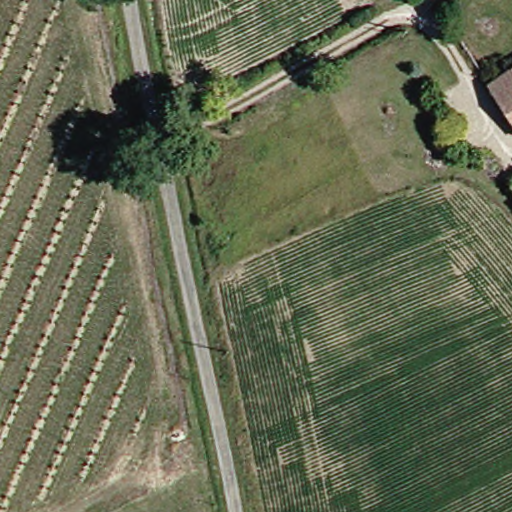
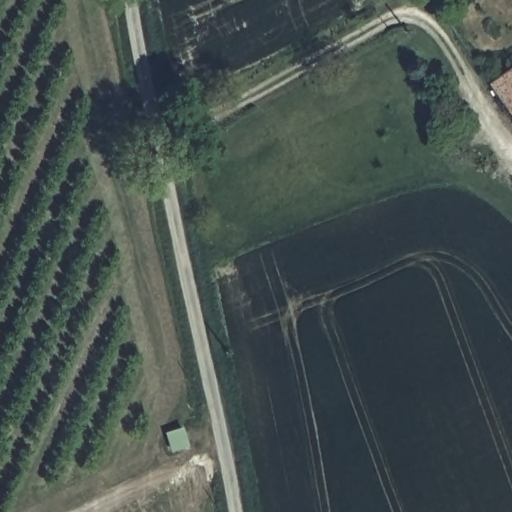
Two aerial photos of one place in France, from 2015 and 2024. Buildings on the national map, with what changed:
unchanged [(494,83),(512,71),(512,111),(494,83)]

